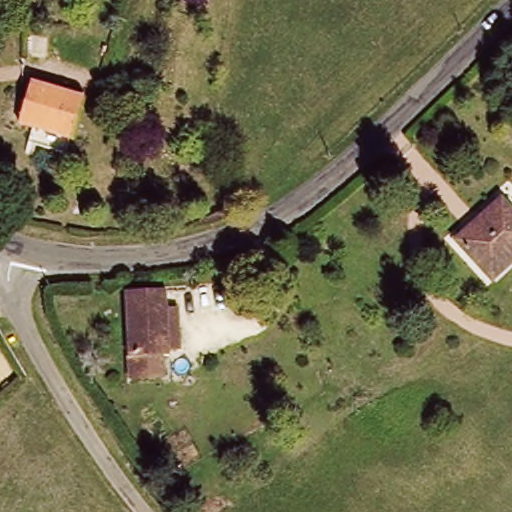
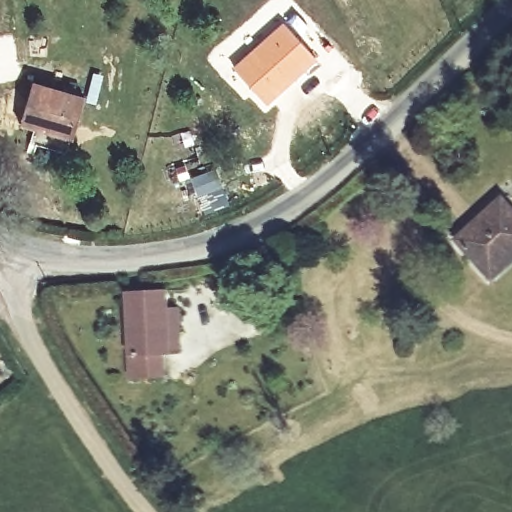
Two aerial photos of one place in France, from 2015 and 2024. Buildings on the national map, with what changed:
new [(281,20),(317,60),(266,105),(231,67),(281,20)]
unchanged [(75,140),(25,121),(39,82),(90,101),(75,140)]
new [(214,167),(222,190),(196,197),(189,177),(214,167)]
unchanged [(481,222),(504,196),(512,204),(512,259),(497,275),(462,243),(481,222)]
unchanged [(172,285),(173,302),(184,303),(186,338),(175,338),(175,354),(165,355),(165,370),(156,370),(154,286),(172,285)]
unchanged [(137,370),(137,287),(154,286),(156,370),(137,370)]

